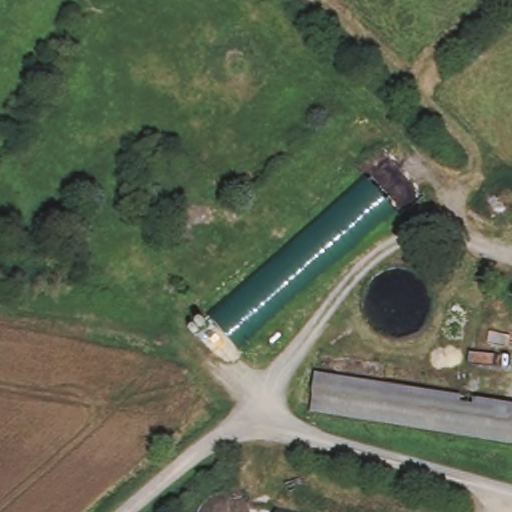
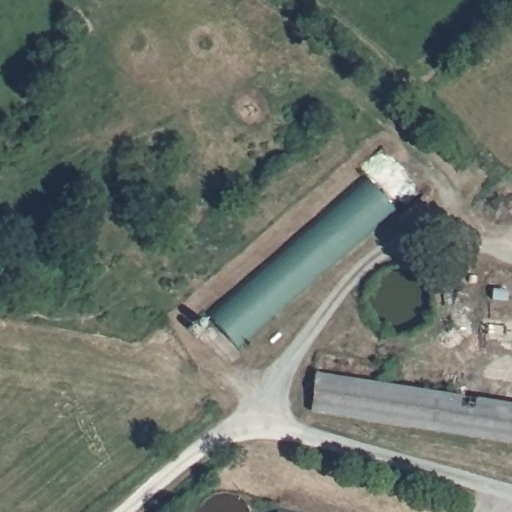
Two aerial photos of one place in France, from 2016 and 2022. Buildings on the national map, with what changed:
unchanged [(366,179),(397,215),(371,238),(290,308),(240,351),(209,314),(366,179)]
unchanged [(313,373),(377,383),(452,394),(512,402),(512,438),(410,425),(308,408),(313,373)]
unchanged [(293,512),(279,512),(280,509),(293,512)]

